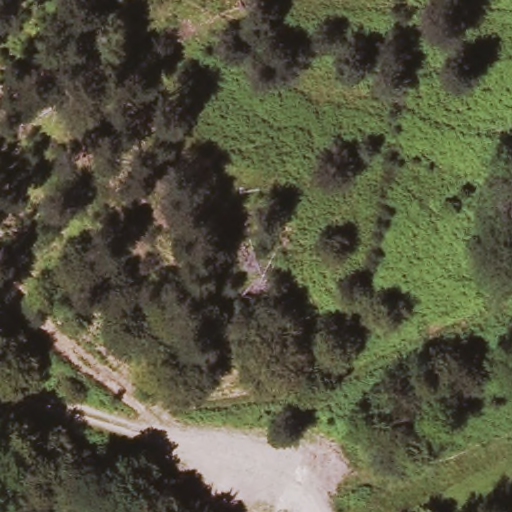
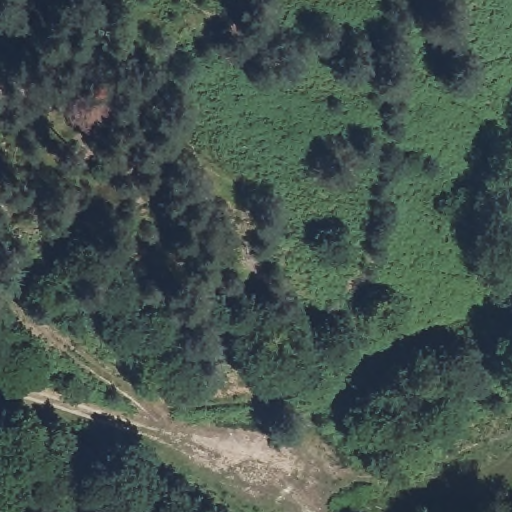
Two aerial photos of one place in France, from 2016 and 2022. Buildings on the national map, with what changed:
unchanged [(512,281),(509,275),(512,273),(512,281)]

